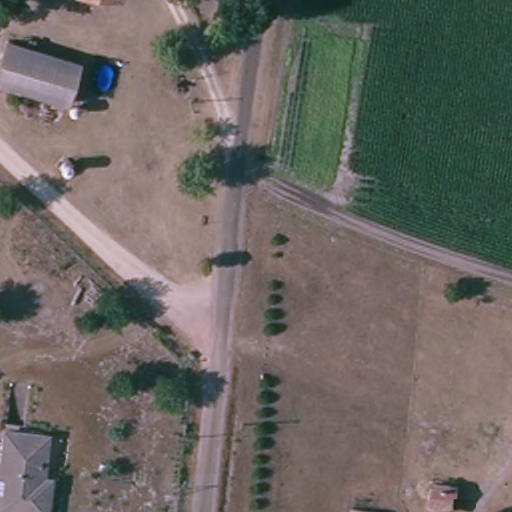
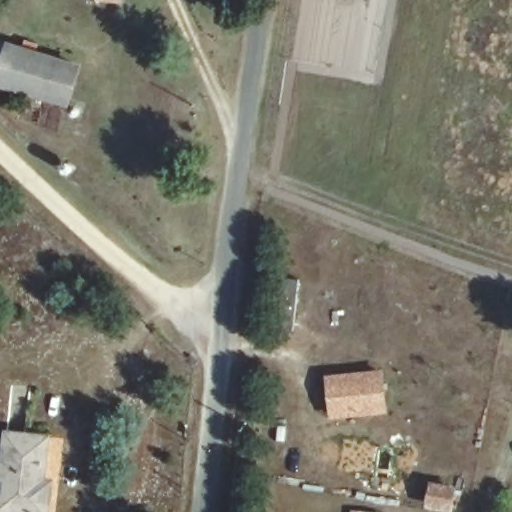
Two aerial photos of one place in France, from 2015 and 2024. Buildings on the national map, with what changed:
unchanged [(0,90),(0,62),(6,44),(81,66),(69,104),(63,136),(13,123),(19,93),(0,90)]
new [(329,419),(325,375),(384,370),(389,414),(329,419)]
unchanged [(3,474),(0,474),(0,433),(40,437),(38,477),(49,479),(45,512),(14,512),(1,510),(3,474)]
unchanged [(424,504),(411,503),(415,478),(425,479),(458,484),(451,512),(440,512),(422,508),(424,504)]

